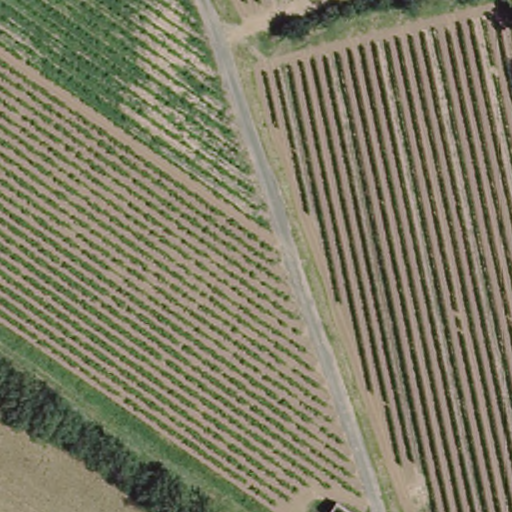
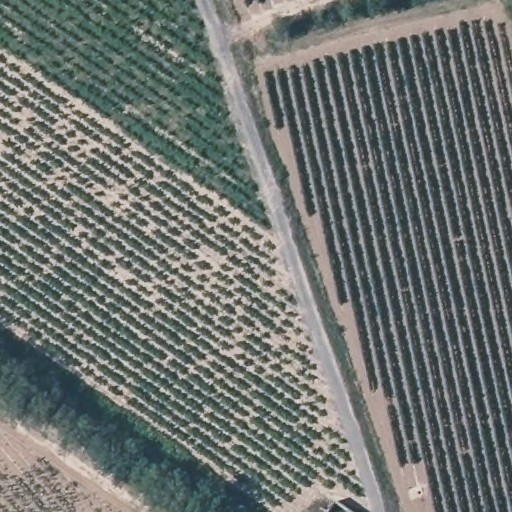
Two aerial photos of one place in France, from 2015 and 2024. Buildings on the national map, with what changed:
unchanged [(322,505),(334,512),(341,500),(357,512),(318,512),(322,505)]

